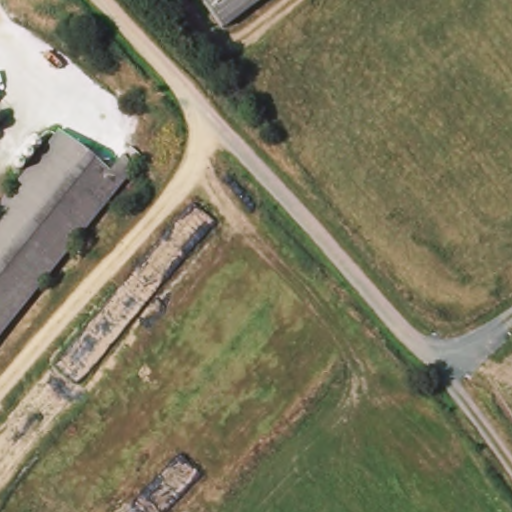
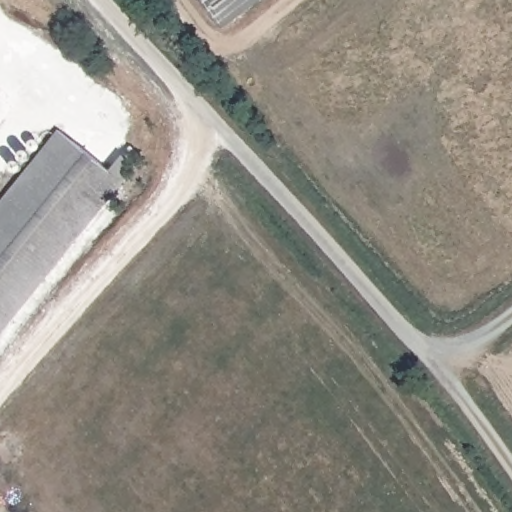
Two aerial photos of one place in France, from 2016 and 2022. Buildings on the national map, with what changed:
unchanged [(225,29),(204,0),(265,0),(225,29)]
unchanged [(128,184),(0,340),(0,213),(66,133),(128,184)]

